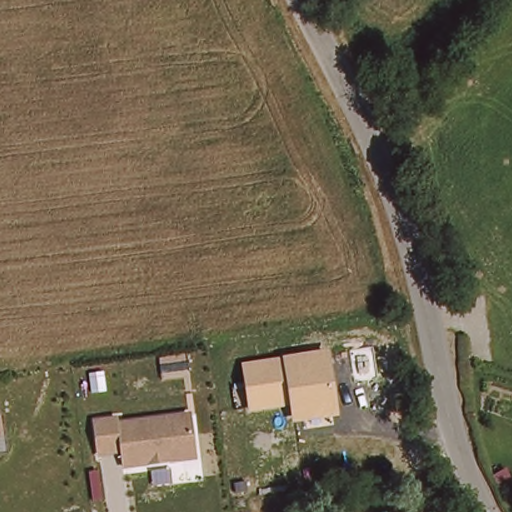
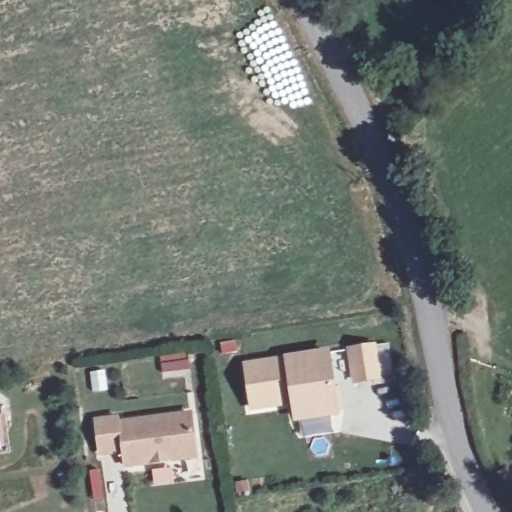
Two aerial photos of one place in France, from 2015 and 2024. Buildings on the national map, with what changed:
new [(382,381),(352,386),(346,348),(389,342),(394,375),(382,377),(382,381)]
unchanged [(328,350),(340,415),(293,422),(291,407),(248,412),(242,362),(328,350)]
unchanged [(0,438),(0,397),(1,397),(6,438),(0,438)]
unchanged [(201,458),(124,470),(122,454),(100,457),(94,421),(122,416),(124,422),(193,411),(201,458)]
unchanged [(501,465),(507,478),(497,484),(491,471),(501,465)]

